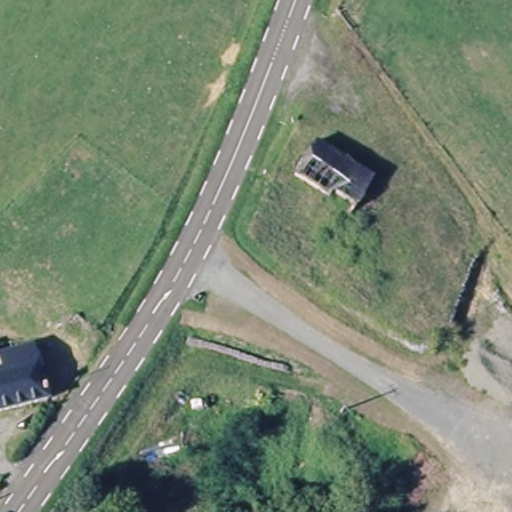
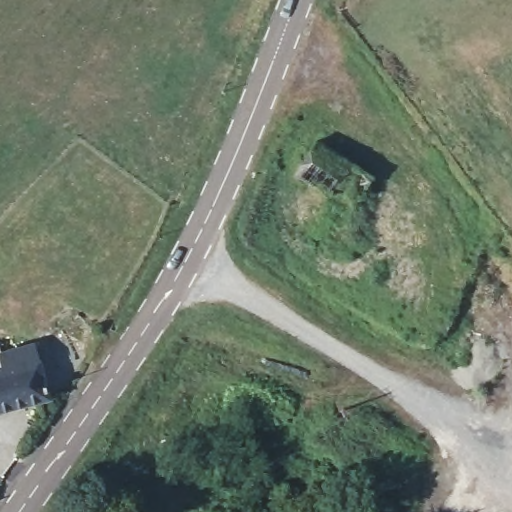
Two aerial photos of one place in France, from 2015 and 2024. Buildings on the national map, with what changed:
unchanged [(0,423),(0,360),(36,360),(51,412),(0,423)]

